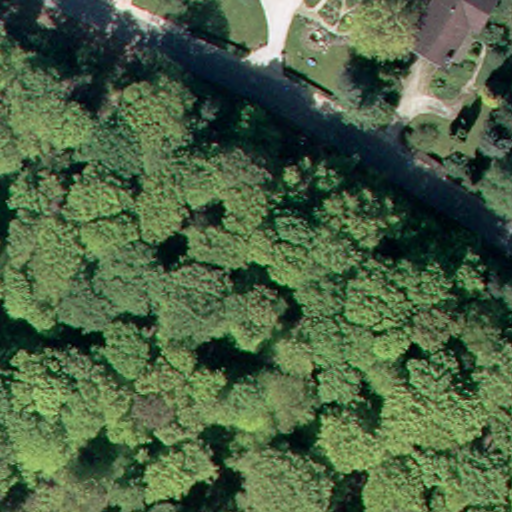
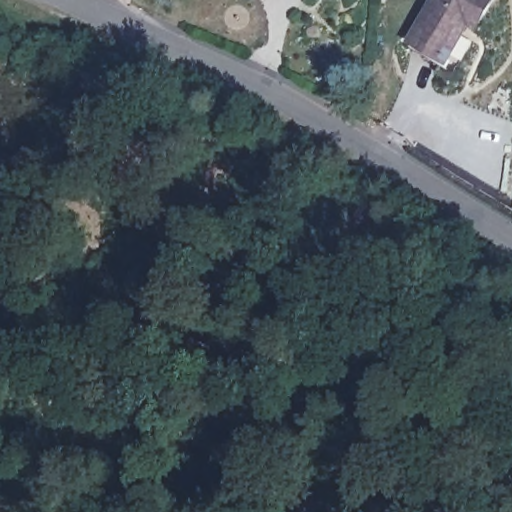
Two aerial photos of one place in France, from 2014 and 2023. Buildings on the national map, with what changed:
unchanged [(435,0),(490,0),(477,23),(469,19),(446,57),(413,39),(413,37),(435,0)]

